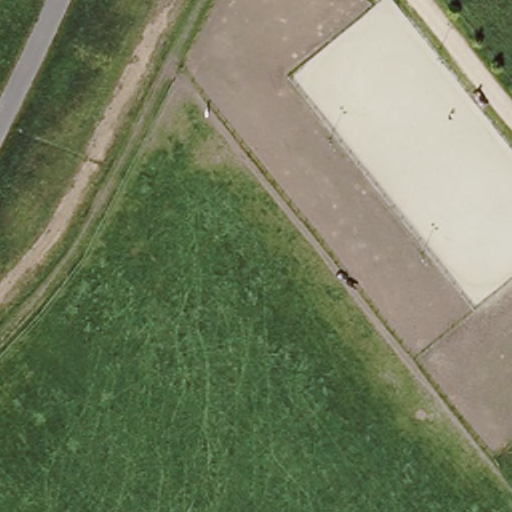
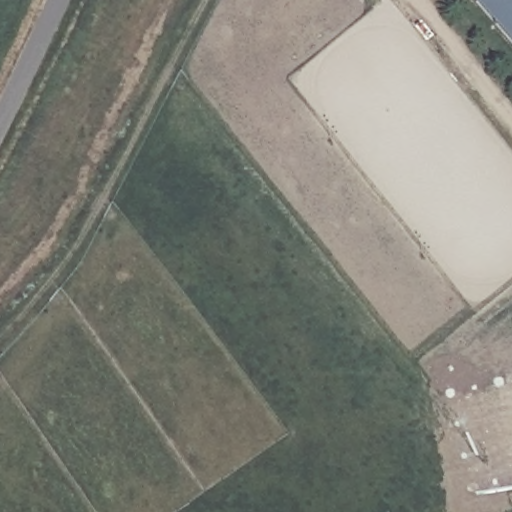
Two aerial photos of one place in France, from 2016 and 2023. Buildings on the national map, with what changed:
new [(512,0),(512,46),(473,0),(512,0)]

